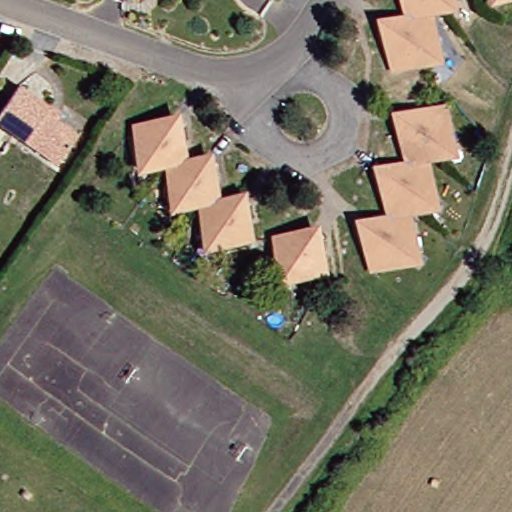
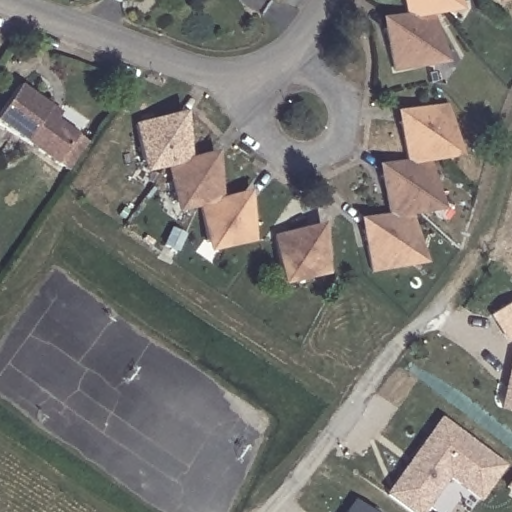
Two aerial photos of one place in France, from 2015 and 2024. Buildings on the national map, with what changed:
unchanged [(407,11),(405,0),(453,0),(450,7),(445,7),(433,8),(407,11)]
unchanged [(394,14),(407,11),(433,8),(440,50),(432,60),(390,63),(386,26),(382,22),(390,10),(394,14)]
unchanged [(52,159),(0,121),(0,108),(17,82),(47,105),(44,110),(72,129),(52,159)]
unchanged [(430,155),(410,157),(402,116),(411,104),(414,107),(453,101),(457,140),(460,142),(451,154),(445,154),(430,155)]
unchanged [(173,161),(167,162),(157,165),(147,157),(145,146),(142,118),(176,115),(180,111),(190,120),(194,157),(173,161)]
unchanged [(210,153),(220,161),(222,198),(204,202),(199,202),(186,204),(176,198),(173,161),(194,157),(210,153)]
unchanged [(409,206),(387,209),(380,169),(388,159),(399,158),(410,157),(430,155),(436,194),(429,205),(417,205),(409,206)]
unchanged [(234,196),(240,192),(251,201),(249,204),(252,240),(215,245),(206,240),(204,202),(222,198),(234,196)]
unchanged [(415,246),(409,256),(365,260),(360,220),(367,209),(387,209),(409,206),(415,246)]
unchanged [(325,233),(328,270),(293,276),(282,270),(279,231),(310,229),(315,225),(325,233)]
new [(512,357),(512,413),(497,410),(510,358),(512,357)]
new [(439,421),(502,467),(478,500),(446,477),(421,512),(404,512),(384,497),(439,421)]
new [(352,502),(366,512),(345,512),(352,502)]

